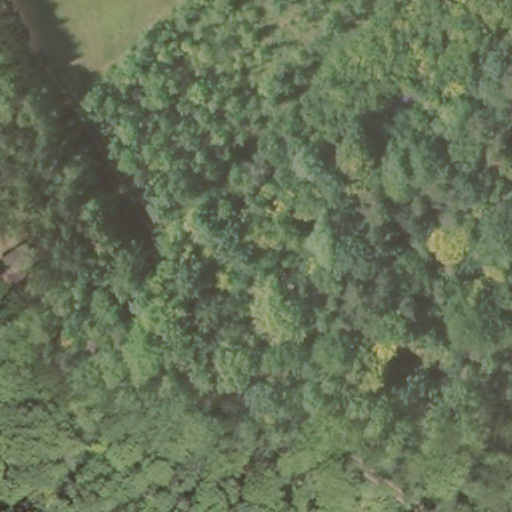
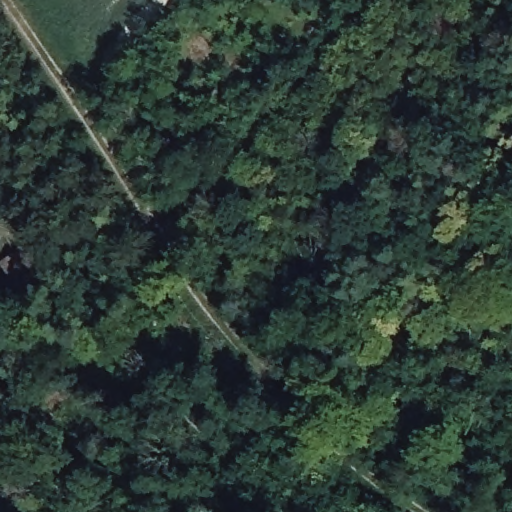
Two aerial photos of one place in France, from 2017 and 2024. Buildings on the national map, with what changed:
unchanged [(69,271),(54,284),(35,263),(50,250),(69,271)]

